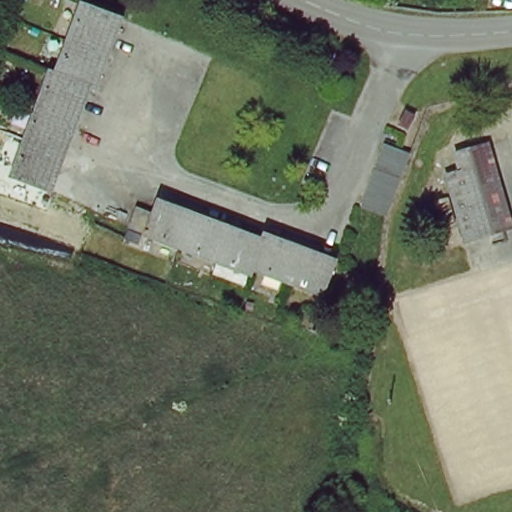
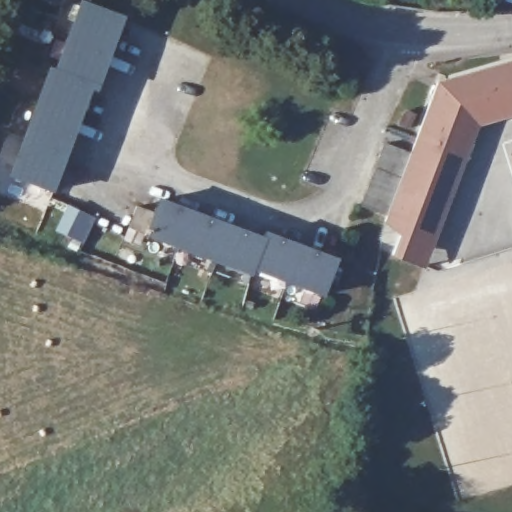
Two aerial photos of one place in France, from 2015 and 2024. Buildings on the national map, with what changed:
unchanged [(52,74),(58,75),(83,6),(120,20),(58,194),(15,179),(52,74)]
new [(437,82),(512,60),(512,116),(477,126),(423,267),(392,257),(399,236),(384,219),(412,157),(408,155),(437,82)]
unchanged [(407,109),(418,113),(412,127),(402,124),(407,109)]
demolished [(472,239),(452,171),(466,168),(461,150),(493,141),(499,162),(477,168),(496,232),(472,239)]
unchanged [(356,207),(385,146),(412,157),(384,219),(356,207)]
unchanged [(152,219),(158,206),(260,240),(261,235),(331,258),(319,293),(251,270),(248,277),(122,234),(129,210),(152,219)]

